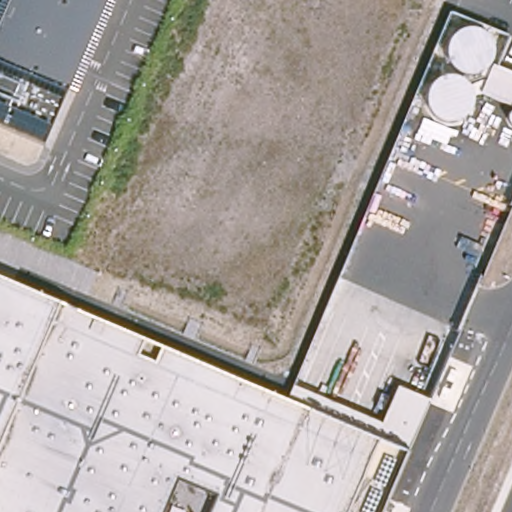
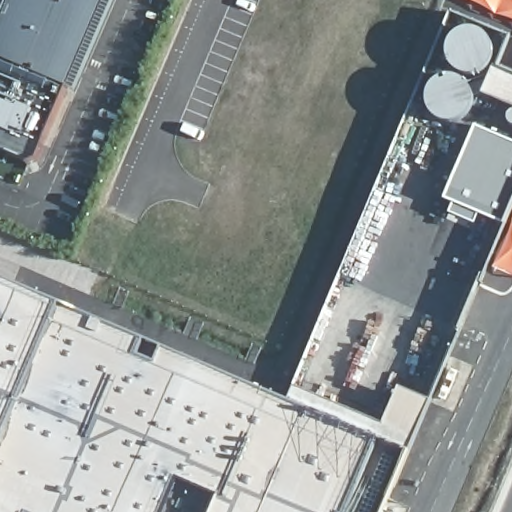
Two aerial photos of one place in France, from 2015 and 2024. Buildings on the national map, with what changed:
unchanged [(66,96),(45,145),(0,127),(0,1),(1,0),(118,0),(75,99),(66,96)]
unchanged [(492,65),(512,74),(512,107),(481,94),(492,65)]
new [(512,206),(505,224),(480,214),(475,224),(450,213),(454,203),(443,198),(475,126),(512,142),(512,206)]
unchanged [(60,304),(286,401),(292,386),(381,424),(397,387),(430,400),(407,454),(383,512),(0,512),(0,279),(60,304)]

